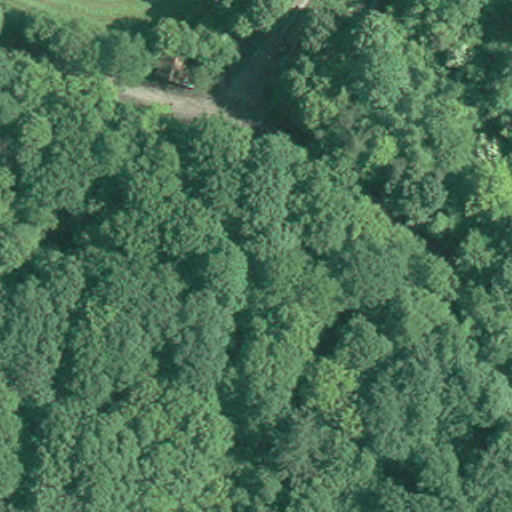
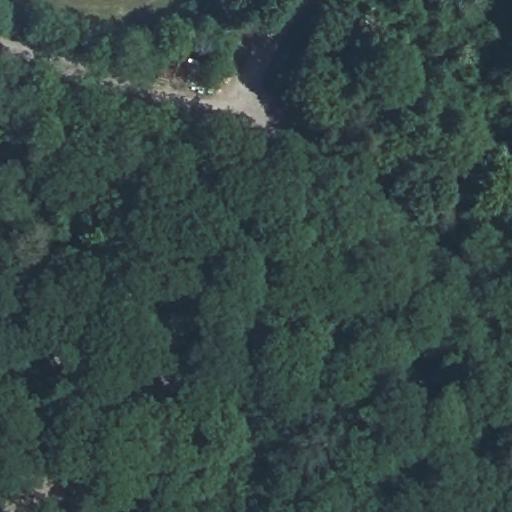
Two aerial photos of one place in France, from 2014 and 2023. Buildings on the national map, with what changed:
unchanged [(158,77),(164,54),(187,60),(196,61),(191,79),(182,76),(180,85),(158,77)]

